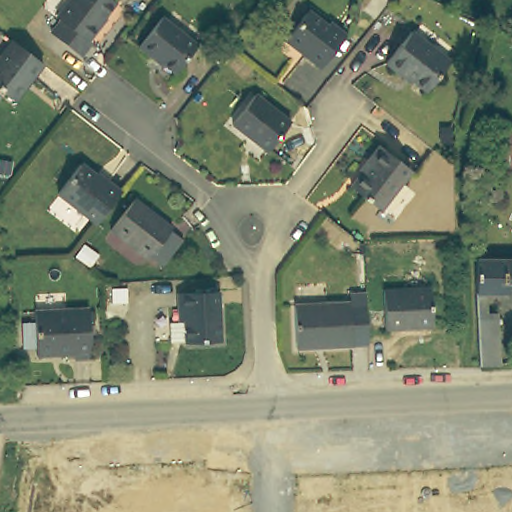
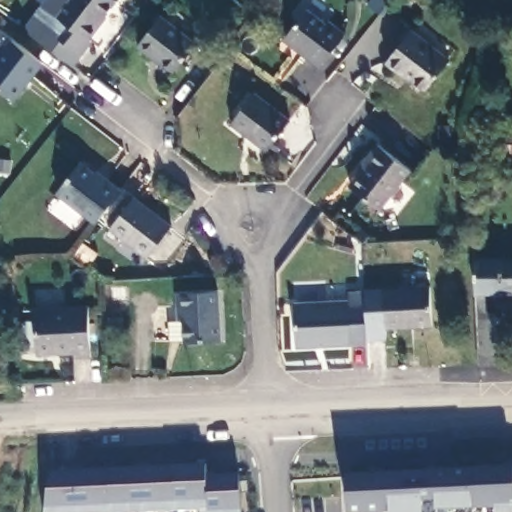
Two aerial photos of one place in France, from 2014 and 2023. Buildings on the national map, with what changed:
unchanged [(109,1),(91,24),(90,28),(82,39),(85,41),(75,54),(45,32),(55,20),(50,16),(62,0),(108,0),(109,1)]
unchanged [(137,16),(123,7),(128,0),(149,0),(137,16)]
unchanged [(318,23),(321,20),(338,32),(311,65),(298,56),(298,53),(277,37),(299,9),(318,23)]
unchanged [(174,67),(160,56),(159,58),(138,41),(160,12),(195,39),(174,67)]
unchanged [(442,61),(420,90),(395,71),(393,73),(380,63),(405,32),(442,61)]
unchanged [(8,99),(0,92),(0,44),(6,36),(38,60),(8,99)]
unchanged [(286,118),(264,147),(244,132),(244,134),(228,121),(251,91),(286,118)]
unchanged [(499,126),(512,126),(512,172),(498,172),(499,126)]
unchanged [(374,208),(346,185),(365,161),(363,159),(374,145),(404,168),(374,208)]
unchanged [(74,161),(98,180),(101,178),(116,189),(92,221),(53,190),(74,161)]
unchanged [(502,199),(487,199),(487,188),(502,188),(502,199)]
unchanged [(167,225),(165,226),(178,236),(157,264),(106,227),(130,196),(167,225)]
unchanged [(495,362),(478,363),(474,312),(473,293),(472,290),(473,257),(512,257),(512,290),(483,290),(484,311),(492,311),(495,362)]
unchanged [(428,325),(381,327),(379,289),(426,286),(428,325)]
unchanged [(180,313),(180,288),(218,287),(220,333),(185,334),(185,333),(170,333),(169,313),(180,313)]
unchanged [(290,304),(344,301),(345,294),(360,293),(362,344),(292,347),(290,304)]
unchanged [(84,355),(68,356),(67,351),(30,352),(27,309),(81,305),(84,355)]
new [(187,512),(45,512),(51,471),(206,465),(208,476),(240,475),(242,512),(200,512),(199,512),(187,512)]
new [(348,512),(346,476),(512,468),(512,512),(348,512)]

